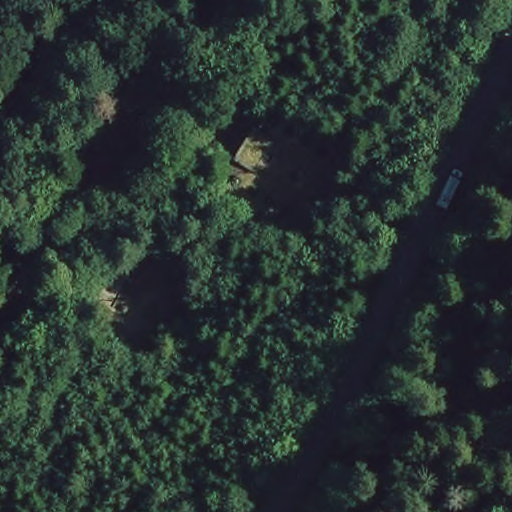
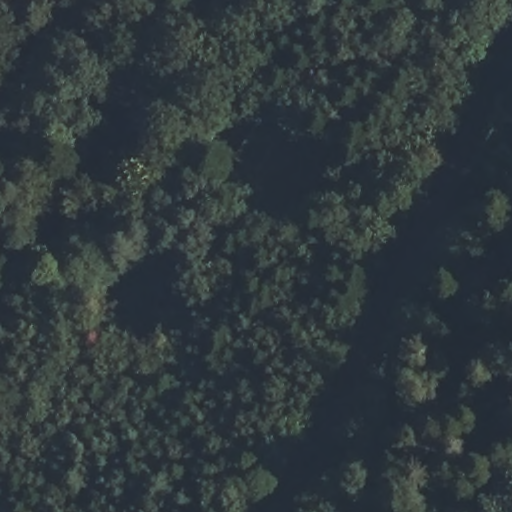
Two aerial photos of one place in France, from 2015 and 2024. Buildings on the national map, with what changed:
unchanged [(281,145),(258,185),(235,173),(260,131),(281,145)]

